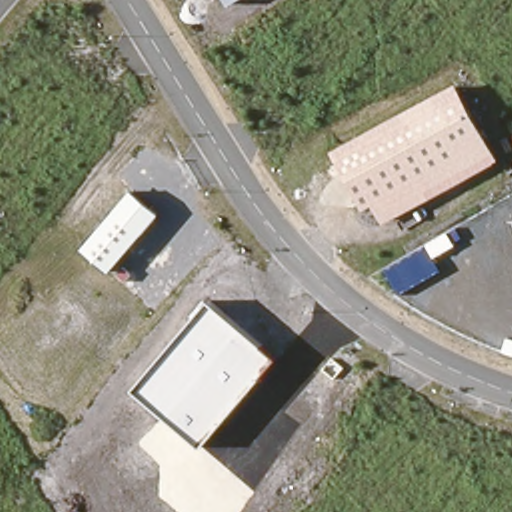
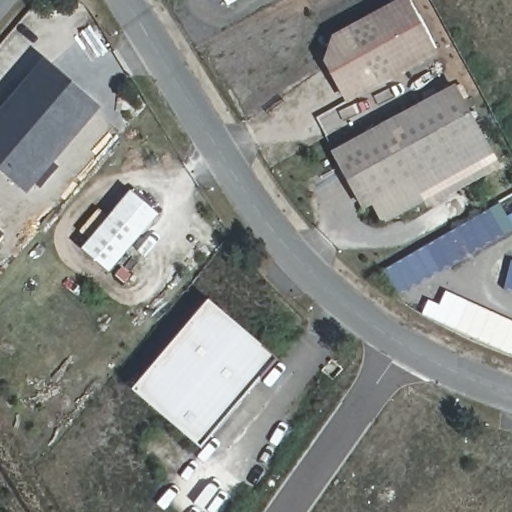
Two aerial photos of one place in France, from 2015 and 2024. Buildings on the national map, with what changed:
unchanged [(226,0),(242,0),(231,7),(226,0)]
new [(336,72),(349,64),(332,36),(397,0),(409,0),(439,54),(353,101),(336,72)]
new [(102,108),(28,194),(0,171),(0,110),(44,57),(102,108)]
unchanged [(385,224),(373,205),(363,211),(332,153),(457,84),(499,158),(385,224)]
unchanged [(112,272),(82,249),(131,190),(162,213),(112,272)]
new [(0,240),(0,229),(6,233),(0,240)]
unchanged [(204,443),(138,389),(212,301),(278,358),(204,443)]

